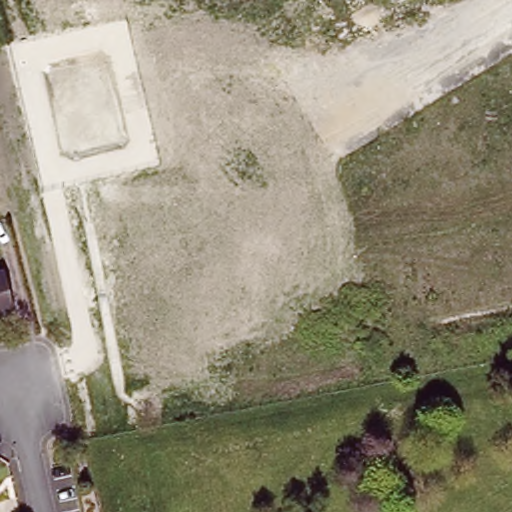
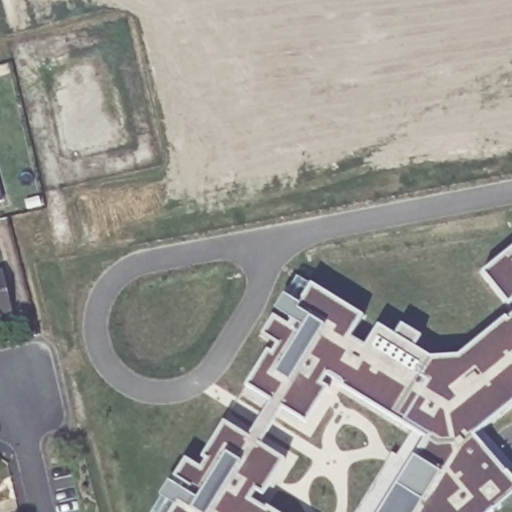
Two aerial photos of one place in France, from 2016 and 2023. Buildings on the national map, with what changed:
new [(0,200),(0,194),(1,199),(0,200)]
new [(482,271),(512,247),(512,299),(508,303),(482,271)]
unchanged [(0,313),(0,272),(4,271),(12,310),(0,313)]
new [(512,479),(512,494),(491,512),(355,512),(407,427),(327,377),(323,384),(329,388),(306,424),(280,408),(260,441),(286,457),(265,495),(256,490),(252,499),(275,512),(169,512),(173,505),(160,497),(168,479),(184,456),(200,467),(205,458),(202,457),(223,420),(245,433),(267,397),(245,385),(266,347),(272,350),(275,343),(261,335),(271,314),(285,321),(287,318),(274,310),(283,293),(298,301),(310,282),(363,314),(351,337),(366,344),(378,323),(393,332),(400,321),(421,334),(415,345),(430,354),(460,353),(503,317),(506,321),(512,316),(512,403),(473,434),(512,479)]

